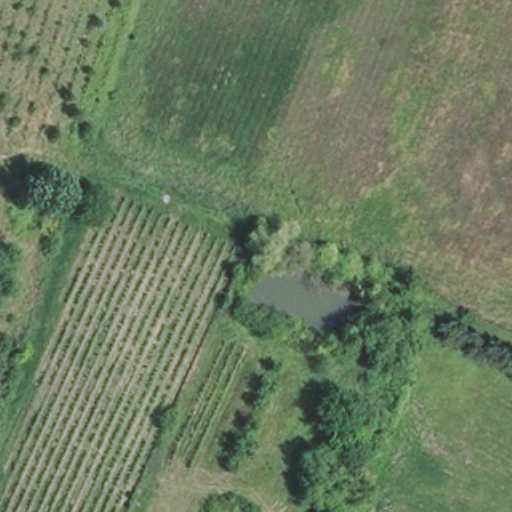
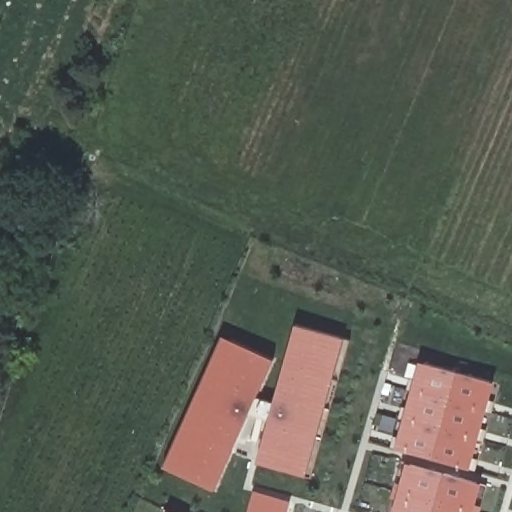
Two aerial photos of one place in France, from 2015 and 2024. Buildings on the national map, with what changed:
new [(338,337),(301,477),(249,461),(286,324),(338,337)]
new [(268,360),(209,489),(158,465),(214,336),(268,360)]
new [(486,381),(464,467),(391,447),(412,361),(486,381)]
new [(472,483),(465,512),(386,512),(398,462),(472,483)]
new [(286,500),(283,512),(244,512),(250,490),(286,500)]

